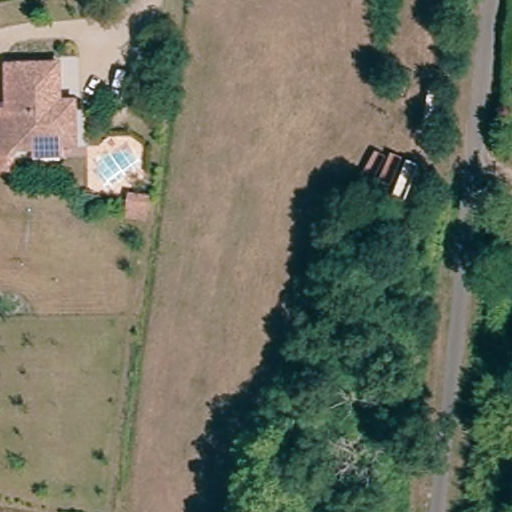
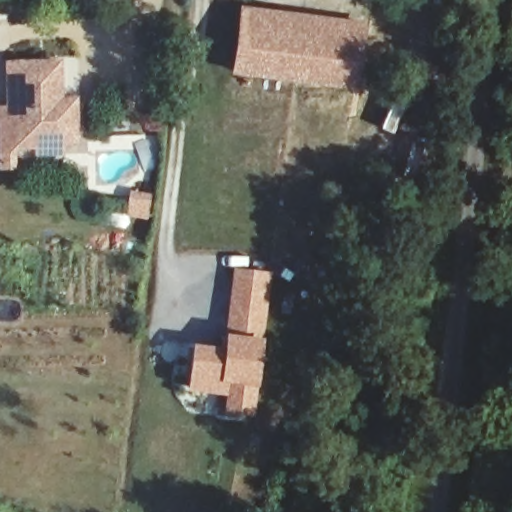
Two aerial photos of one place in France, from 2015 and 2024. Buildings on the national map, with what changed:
new [(239,4),(367,21),(358,90),(301,85),(230,74),(239,4)]
unchanged [(54,147),(29,148),(30,155),(15,156),(14,142),(13,122),(10,122),(10,109),(21,108),(19,66),(67,62),(69,96),(82,95),(84,127),(84,132),(74,132),(74,146),(54,147)]
new [(223,413),(224,396),(187,392),(192,346),(223,350),(224,334),(233,267),(272,272),(262,337),(257,388),(254,416),(223,413)]

